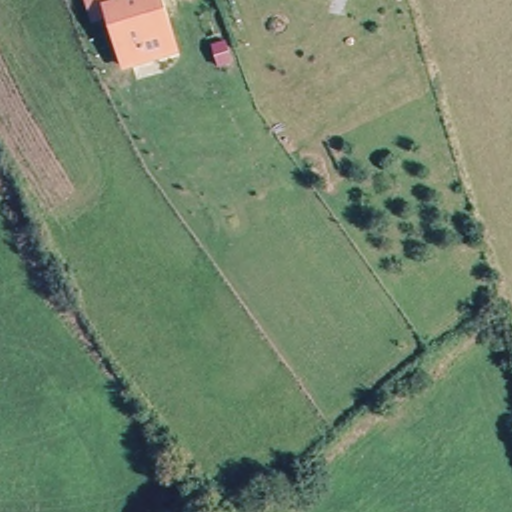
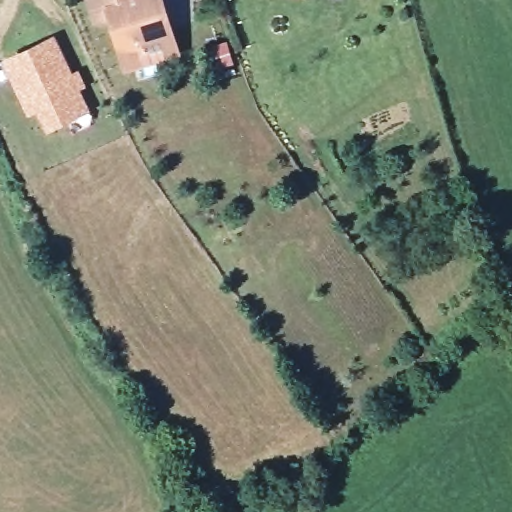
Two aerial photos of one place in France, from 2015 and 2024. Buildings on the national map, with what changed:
unchanged [(128,68),(112,16),(97,21),(91,1),(90,0),(160,0),(176,53),(128,68)]
new [(25,98),(10,65),(52,45),(69,81),(77,76),(82,88),(74,91),(84,111),(52,126),(54,130),(52,131),(41,109),(31,113),(25,98)]

